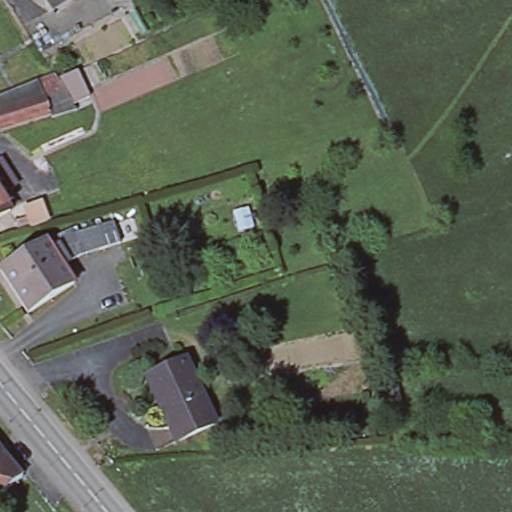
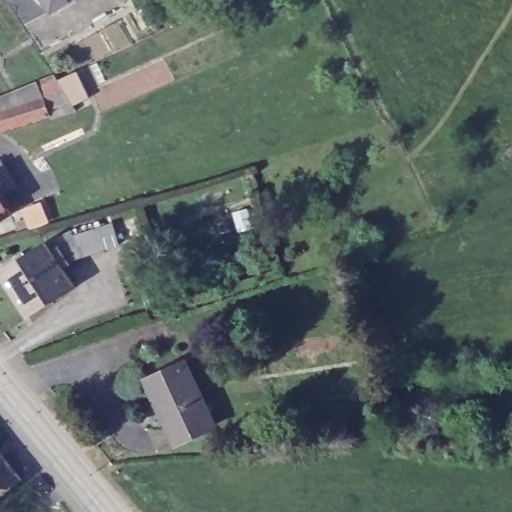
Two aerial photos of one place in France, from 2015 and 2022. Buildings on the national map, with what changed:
unchanged [(44,0),(78,0),(55,16),(44,0)]
unchanged [(59,81),(58,79),(72,73),(85,95),(70,104),(58,83),(59,81)]
unchanged [(33,82),(51,75),(72,111),(47,119),(46,115),(0,129),(0,95),(33,82)]
unchanged [(0,220),(0,161),(1,161),(18,188),(1,198),(11,213),(0,220)]
unchanged [(42,202),(49,221),(35,226),(28,207),(42,202)]
unchanged [(27,219),(30,228),(19,233),(15,224),(27,219)]
unchanged [(76,236),(101,228),(114,225),(120,245),(106,249),(82,256),(66,269),(49,242),(74,230),(76,236)]
unchanged [(29,314),(1,273),(49,242),(66,269),(76,285),(29,314)]
unchanged [(187,361),(217,426),(178,443),(162,408),(167,406),(153,377),(187,361)]
unchanged [(23,477),(24,479),(0,498),(0,449),(23,477)]

